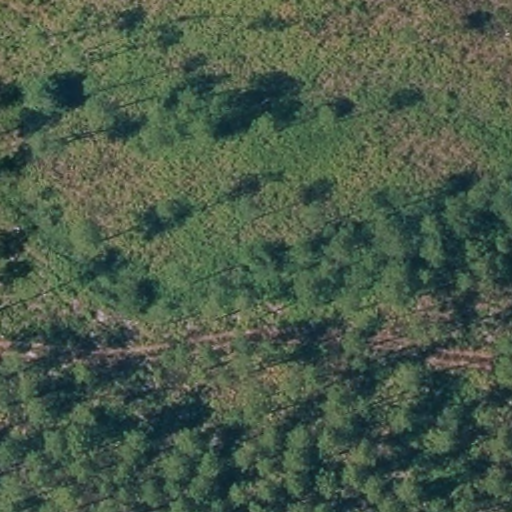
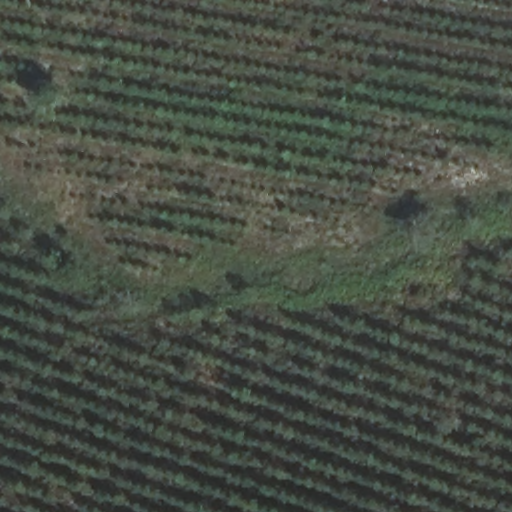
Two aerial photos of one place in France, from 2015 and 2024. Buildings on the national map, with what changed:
[]

